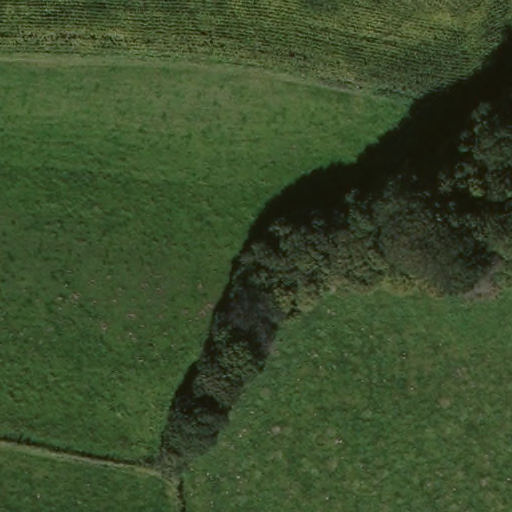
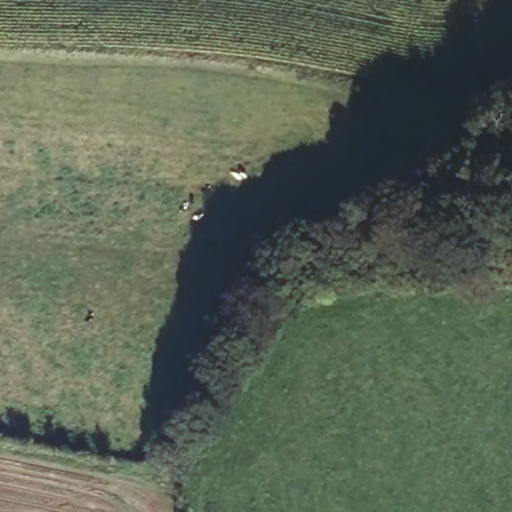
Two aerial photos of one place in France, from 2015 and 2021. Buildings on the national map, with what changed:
[]

